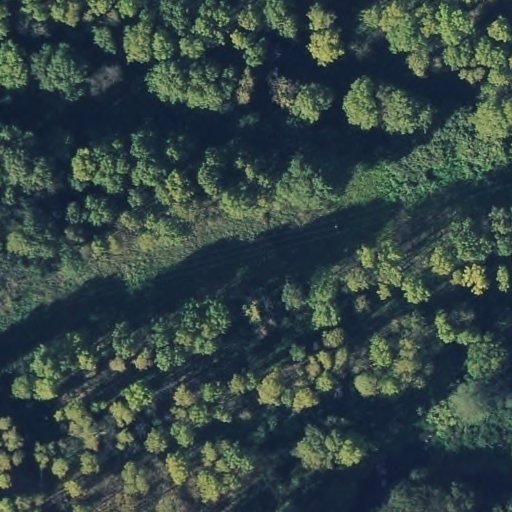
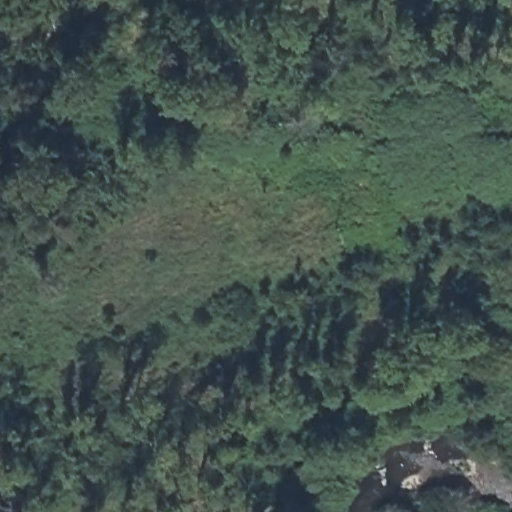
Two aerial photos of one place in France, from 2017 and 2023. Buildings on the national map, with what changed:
[]

